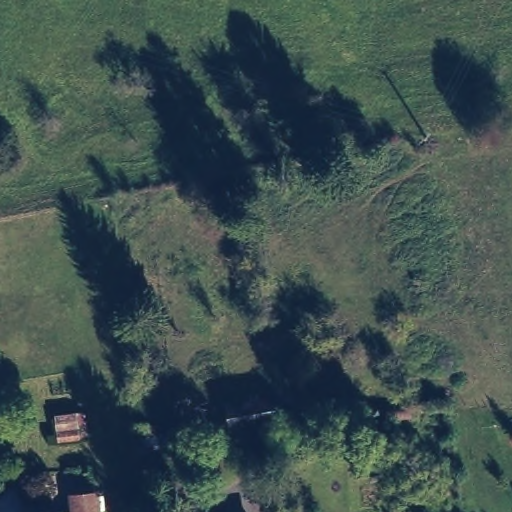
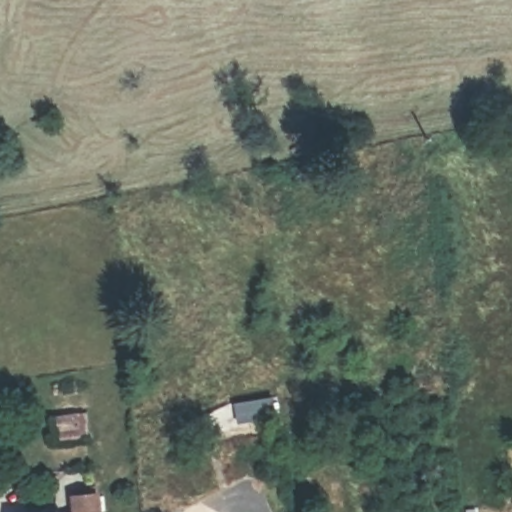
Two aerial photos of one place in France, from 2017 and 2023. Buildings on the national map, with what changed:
unchanged [(276,388),(282,416),(230,427),(225,396),(276,388)]
unchanged [(76,499),(75,491),(94,489),(95,496),(96,512),(78,512),(76,499)]

